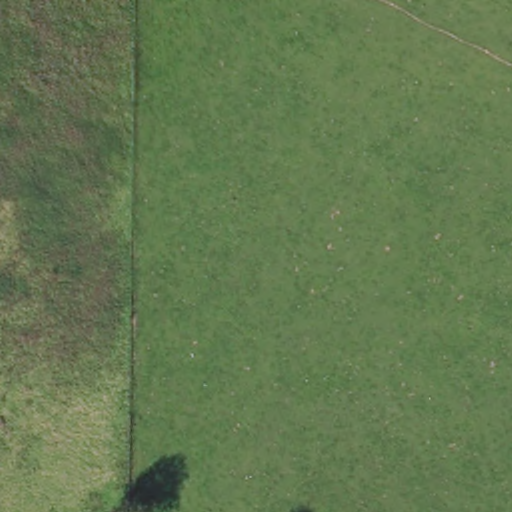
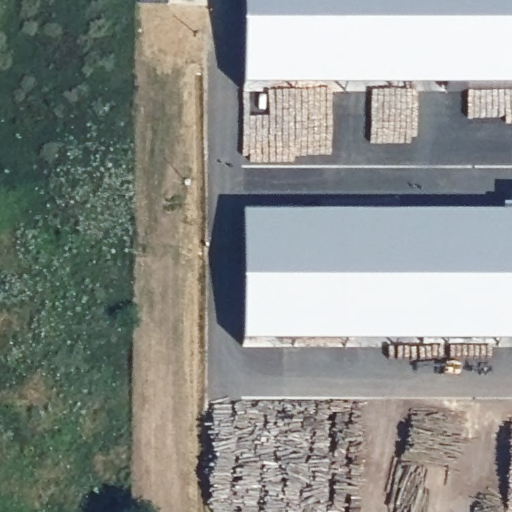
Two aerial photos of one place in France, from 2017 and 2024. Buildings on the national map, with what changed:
new [(242,0),(512,0),(512,93),(241,93),(242,0)]
new [(242,217),(512,217),(512,347),(242,347),(242,217)]

